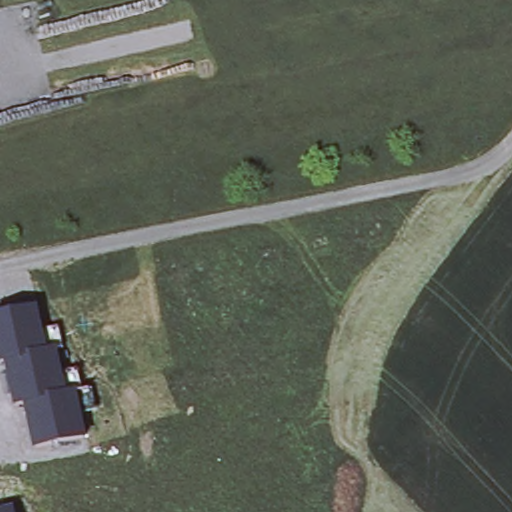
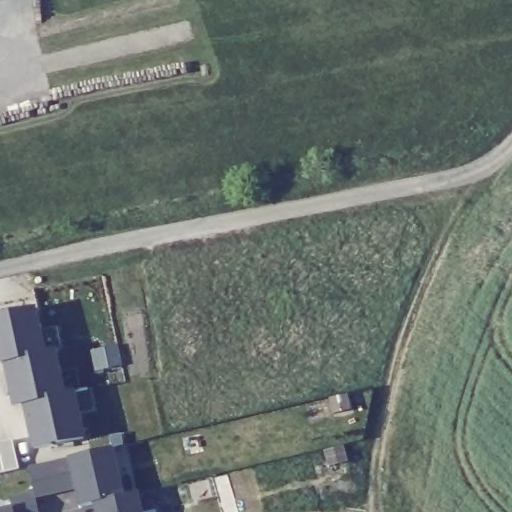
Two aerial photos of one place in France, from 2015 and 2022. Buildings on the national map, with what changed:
unchanged [(45,353),(55,351),(65,396),(74,394),(84,437),(34,448),(25,405),(16,406),(6,363),(0,364),(0,318),(36,310),(45,353)]
new [(35,491),(30,467),(70,456),(114,447),(124,495),(138,492),(143,512),(96,512),(95,504),(80,508),(75,485),(36,497),(39,512),(15,512),(13,506),(11,496),(35,491)]
unchanged [(15,512),(0,512),(0,509),(13,506),(15,512)]

